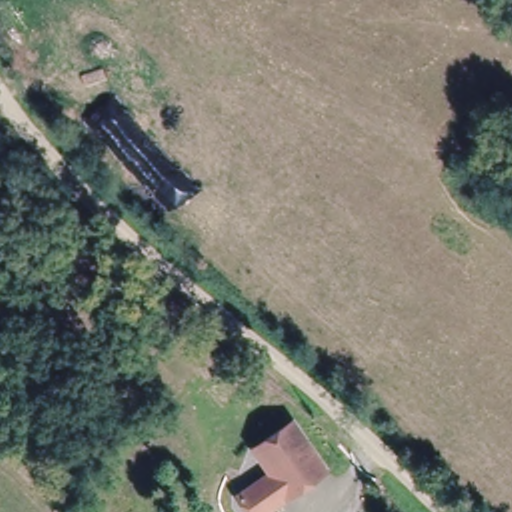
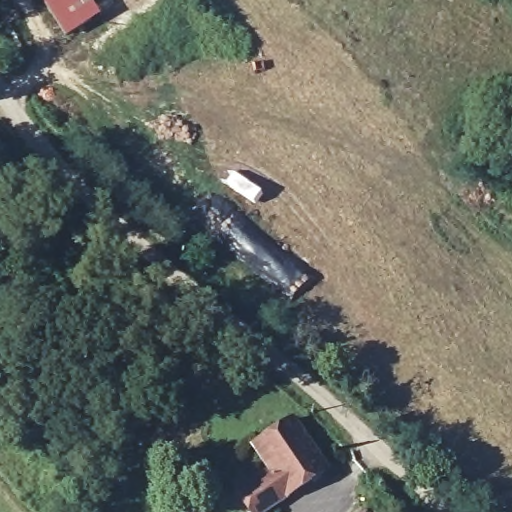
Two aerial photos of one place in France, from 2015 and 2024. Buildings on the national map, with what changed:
new [(65,37),(39,0),(91,0),(100,15),(65,37)]
unchanged [(345,468),(280,512),(255,512),(243,494),(279,471),(266,448),(311,418),(345,468)]

